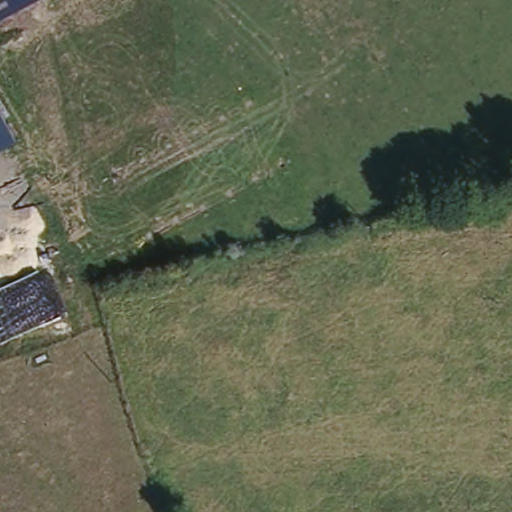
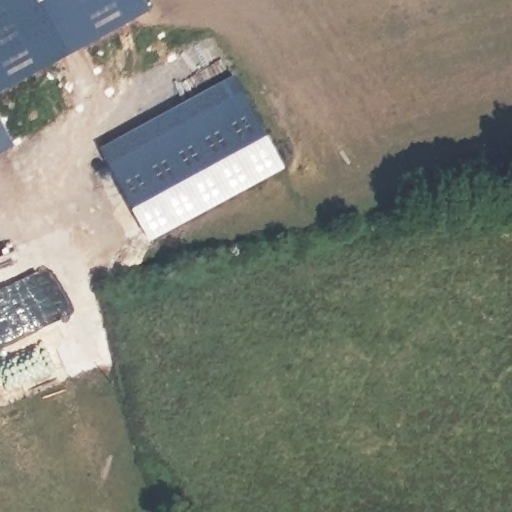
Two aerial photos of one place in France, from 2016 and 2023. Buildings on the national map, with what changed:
unchanged [(0,22),(0,0),(40,0),(0,22)]
new [(236,74),(284,164),(151,235),(103,145),(236,74)]
unchanged [(13,147),(0,153),(0,122),(13,147)]

